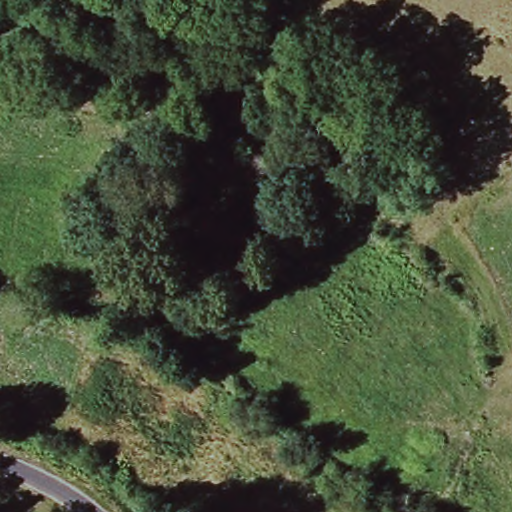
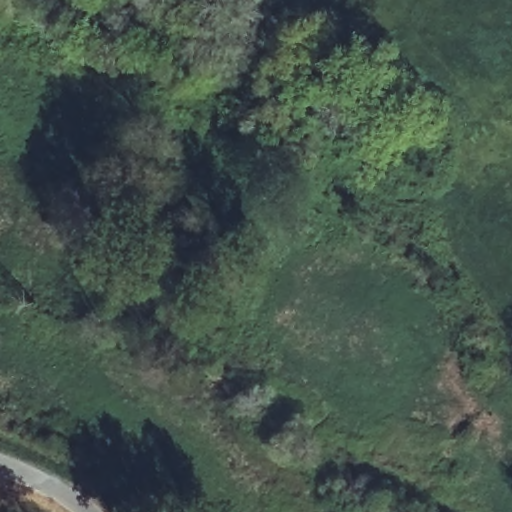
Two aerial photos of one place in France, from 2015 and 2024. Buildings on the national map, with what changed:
[]

